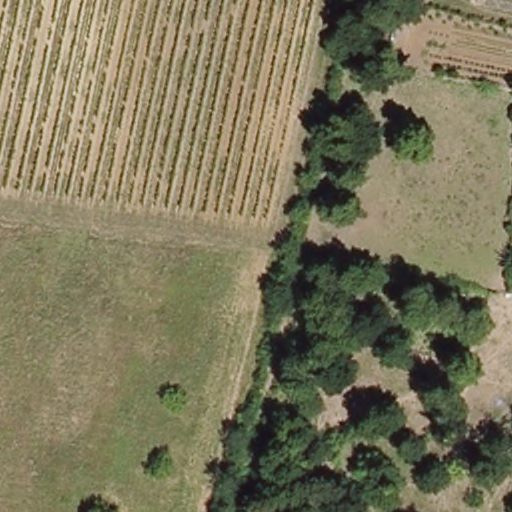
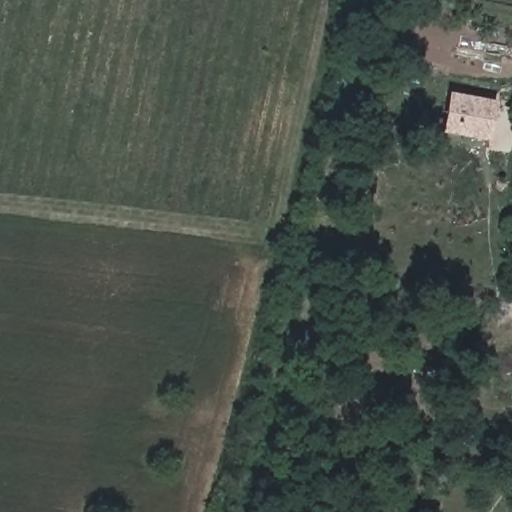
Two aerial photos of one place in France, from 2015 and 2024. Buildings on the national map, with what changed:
new [(448,91),(495,100),(489,140),(441,133),(448,91)]

